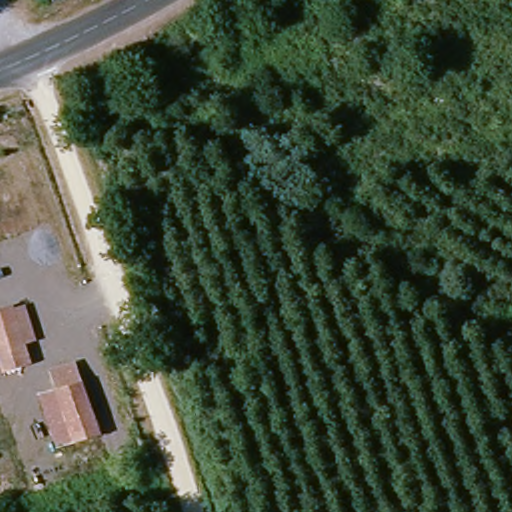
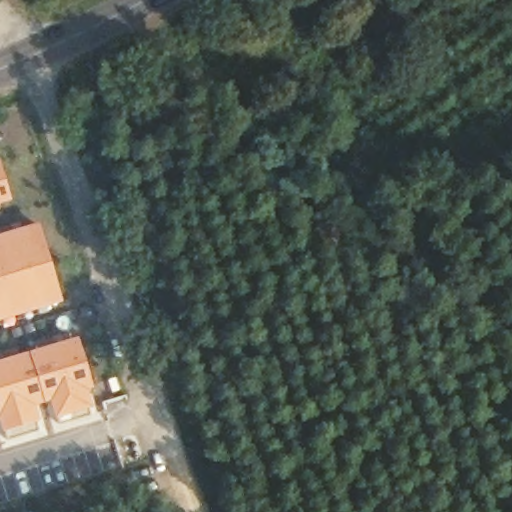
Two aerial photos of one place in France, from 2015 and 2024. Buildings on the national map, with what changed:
new [(11,197),(0,200),(0,162),(11,197)]
new [(63,302),(0,320),(0,234),(37,223),(63,302)]
demolished [(0,354),(0,304),(5,302),(21,347),(0,354)]
new [(92,387),(86,389),(92,409),(56,421),(50,400),(35,403),(40,421),(2,430),(0,421),(0,360),(79,336),(92,387)]
demolished [(33,403),(51,396),(46,382),(69,373),(92,437),(51,453),(33,403)]

